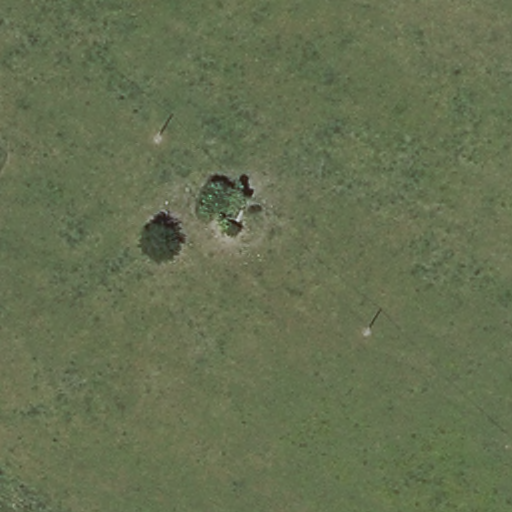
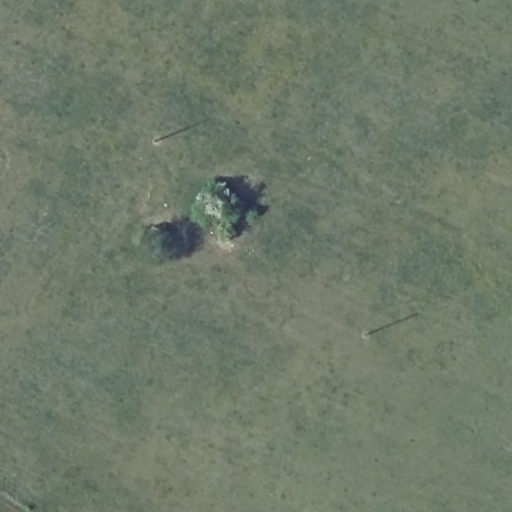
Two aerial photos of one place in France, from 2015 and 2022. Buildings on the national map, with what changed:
[]

